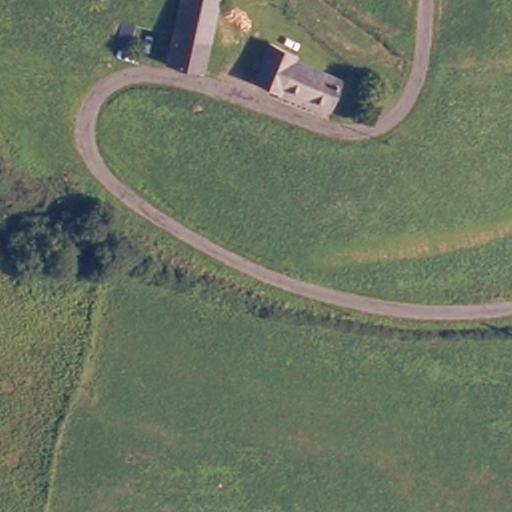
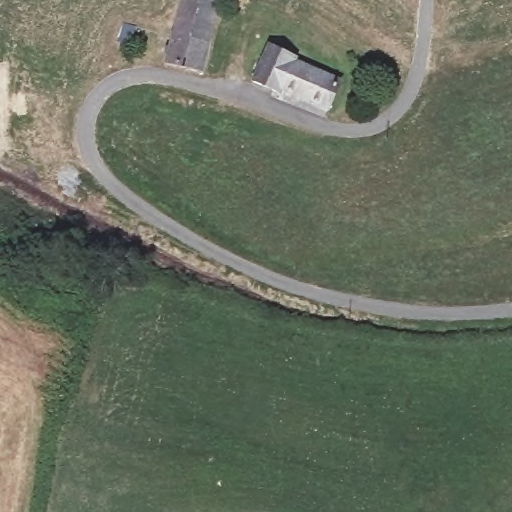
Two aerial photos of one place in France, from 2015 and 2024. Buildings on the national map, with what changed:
unchanged [(223,0),(211,44),(174,35),(182,0),(223,0)]
unchanged [(211,44),(202,74),(166,62),(174,35),(211,44)]
unchanged [(271,47),(344,81),(334,107),(287,87),(283,92),(256,82),(271,47)]

